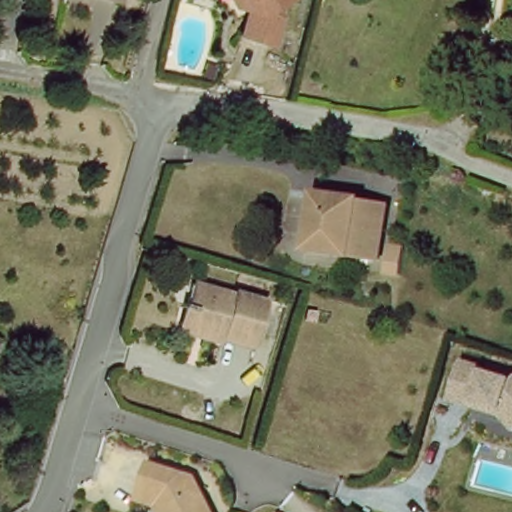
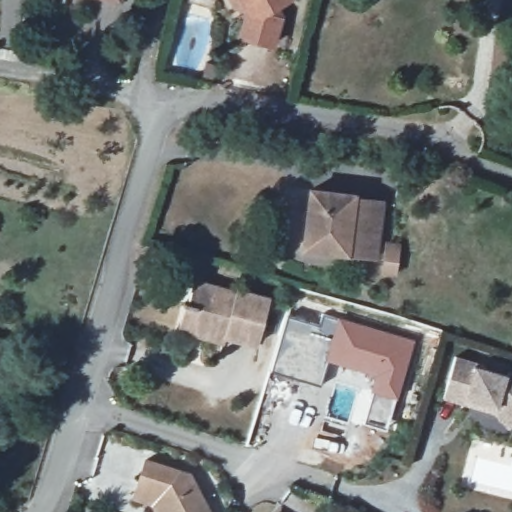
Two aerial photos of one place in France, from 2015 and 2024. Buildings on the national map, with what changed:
unchanged [(281,1),(286,11),(275,41),(228,24),(236,0),(282,0),(281,1)]
unchanged [(305,245),(314,188),(358,194),(357,197),(385,201),(381,231),(377,256),(305,245)]
unchanged [(183,327),(189,305),(192,306),(199,280),(240,292),(241,289),(274,299),(263,339),(230,330),(227,340),(183,327)]
new [(286,315),(319,326),(323,314),(337,317),(326,362),(321,385),(269,370),(286,315)]
new [(337,317),(416,340),(391,415),(383,413),(386,405),(377,403),(373,418),(388,423),(386,430),(363,422),(373,378),(326,362),(337,317)]
unchanged [(476,409),(467,406),(445,400),(458,359),(480,366),(479,370),(509,379),(512,376),(512,430),(511,431),(497,416),(476,409)]
unchanged [(154,507),(135,501),(147,464),(191,478),(212,512),(166,512),(163,504),(154,507)]

